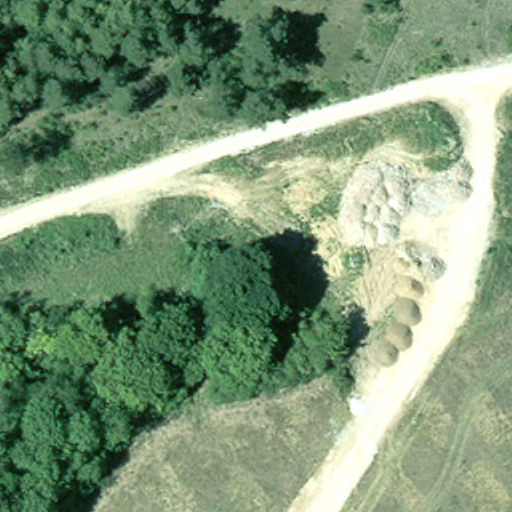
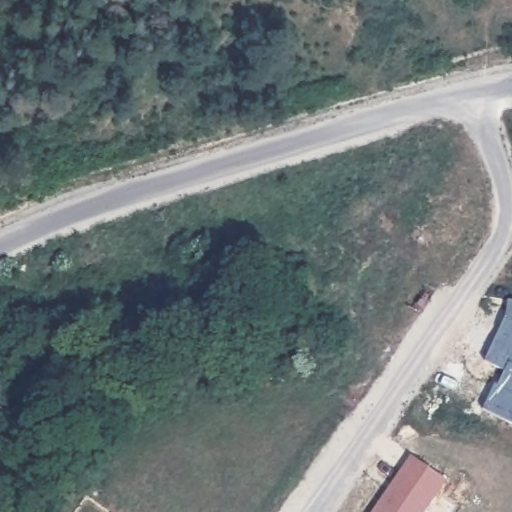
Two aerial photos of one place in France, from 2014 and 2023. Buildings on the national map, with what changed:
new [(508,300),(512,300),(512,374),(485,360),(505,317),(508,300)]
new [(425,512),(372,512),(410,455),(447,480),(425,512)]

